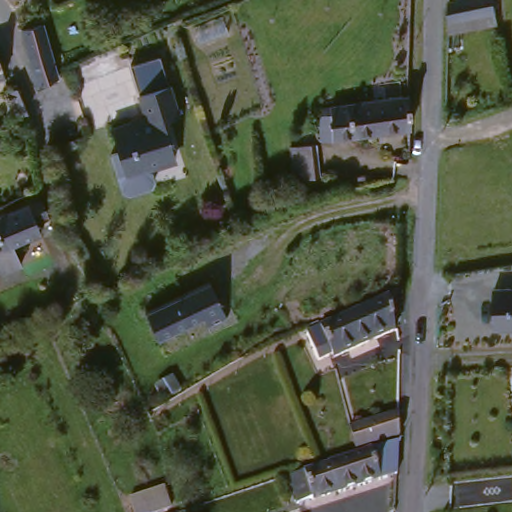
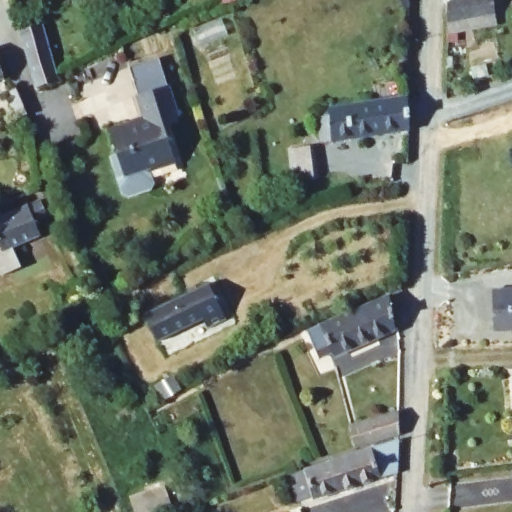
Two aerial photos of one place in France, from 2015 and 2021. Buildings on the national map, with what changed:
unchanged [(502,19),(452,29),(453,0),(500,0),(500,8),(502,19)]
unchanged [(21,30),(42,25),(57,80),(36,89),(21,30)]
unchanged [(164,122),(174,160),(147,168),(129,174),(122,154),(117,155),(110,130),(130,124),(131,127),(147,122),(139,95),(130,67),(159,59),(168,87),(177,119),(164,122)]
unchanged [(16,120),(6,94),(10,92),(16,90),(16,89),(17,90),(18,90),(28,115),(16,120)]
unchanged [(419,125),(330,136),(327,112),(333,111),(332,103),(418,91),(419,125)]
unchanged [(324,140),(328,172),(303,175),(299,144),(324,140)]
unchanged [(129,174),(147,168),(153,185),(149,191),(127,198),(121,195),(110,157),(117,155),(122,154),(129,174)]
unchanged [(46,230),(17,242),(26,261),(7,270),(0,255),(0,249),(7,245),(0,227),(0,215),(46,195),(52,211),(52,212),(52,213),(51,213),(41,217),(46,230)]
unchanged [(512,280),(512,321),(500,322),(495,282),(512,280)]
unchanged [(209,282),(226,320),(207,328),(204,320),(158,341),(145,313),(209,282)]
unchanged [(335,356),(333,353),(320,359),(308,332),(321,326),(321,325),(390,295),(396,329),(335,356)]
unchanged [(157,391),(173,382),(179,394),(164,403),(157,391)]
unchanged [(361,442),(355,420),(405,406),(405,430),(361,442)]
unchanged [(344,486),(344,485),(318,493),(318,492),(303,496),(295,469),(335,456),(335,455),(404,435),(402,468),(344,486)]
unchanged [(130,497),(165,486),(171,506),(154,512),(135,512),(130,497)]

